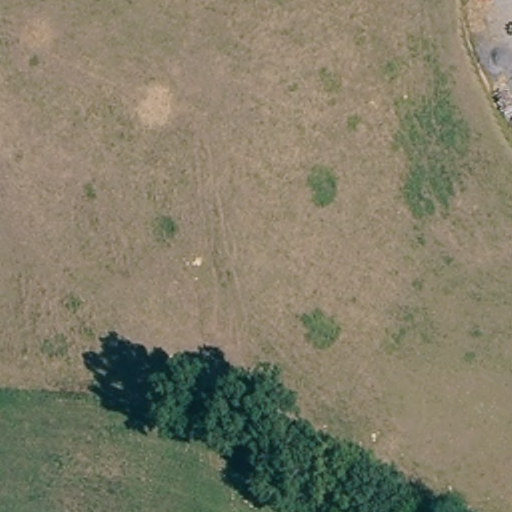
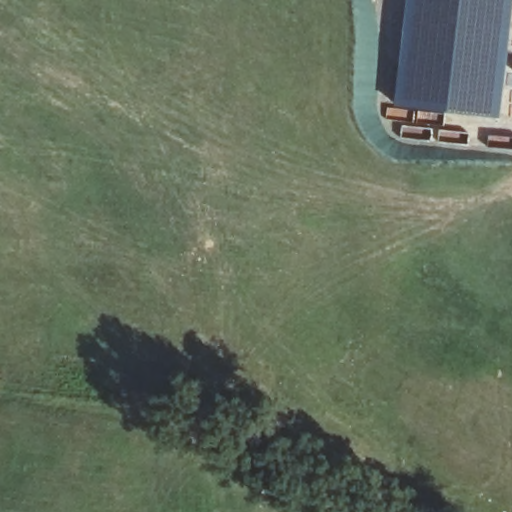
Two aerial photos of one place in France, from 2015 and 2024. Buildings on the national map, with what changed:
new [(512,17),(498,119),(394,106),(406,0),(512,0),(512,17)]

